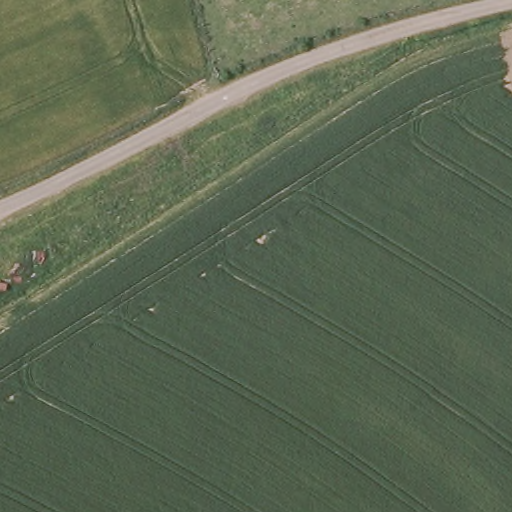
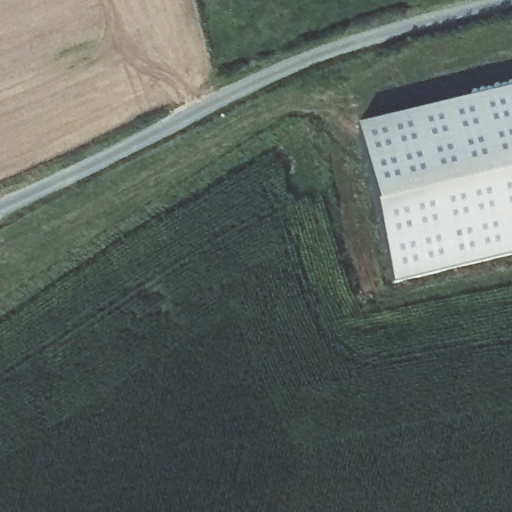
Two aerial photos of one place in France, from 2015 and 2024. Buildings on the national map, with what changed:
new [(354,128),(512,89),(512,254),(392,283),(354,128)]

